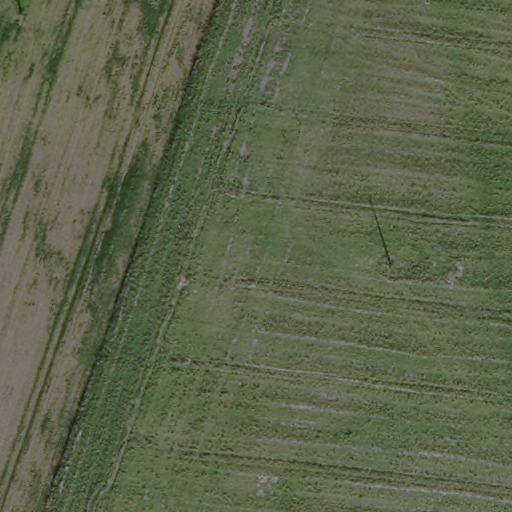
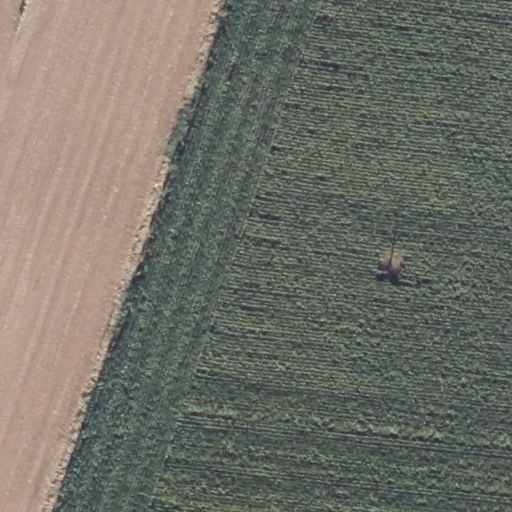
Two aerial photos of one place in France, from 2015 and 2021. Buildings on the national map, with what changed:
[]

